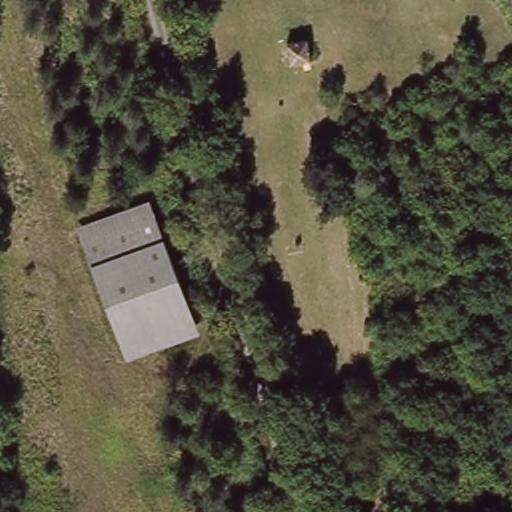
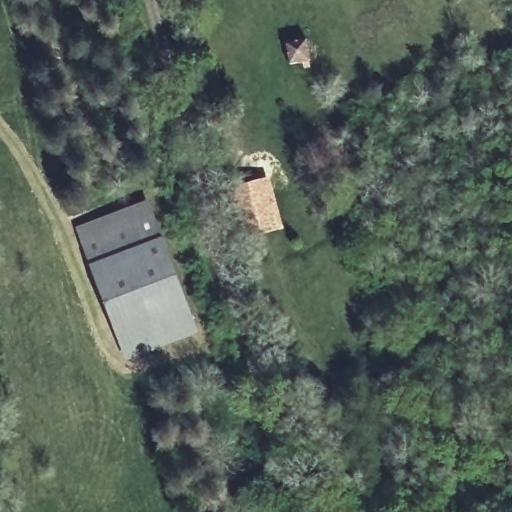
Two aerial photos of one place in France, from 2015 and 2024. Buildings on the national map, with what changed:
unchanged [(309,41),(288,44),(285,23),(305,19),(309,41)]
new [(284,228),(250,237),(236,187),(270,178),(284,228)]
unchanged [(203,333),(131,362),(79,228),(152,197),(203,333)]

